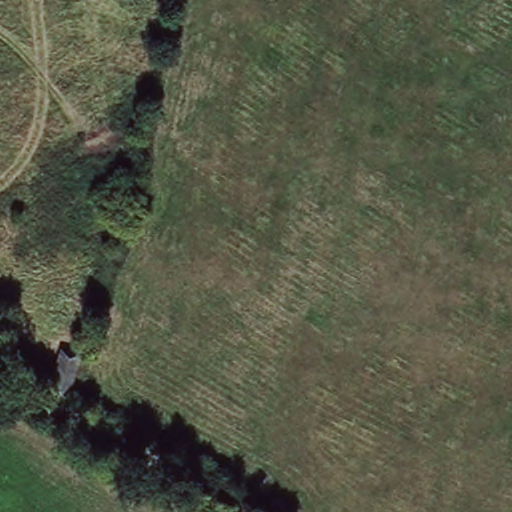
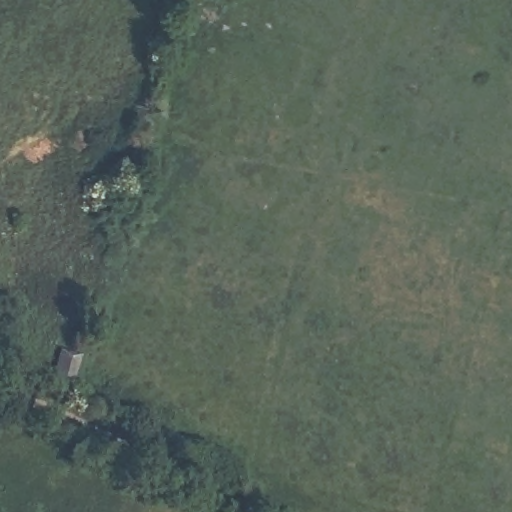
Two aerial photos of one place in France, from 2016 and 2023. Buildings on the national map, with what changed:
unchanged [(86,338),(104,342),(91,390),(72,381),(86,338)]

